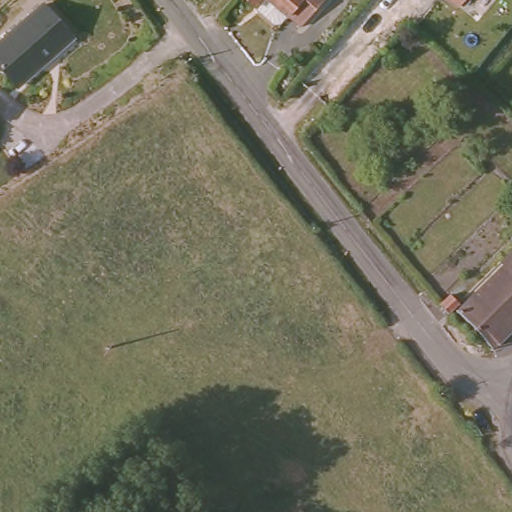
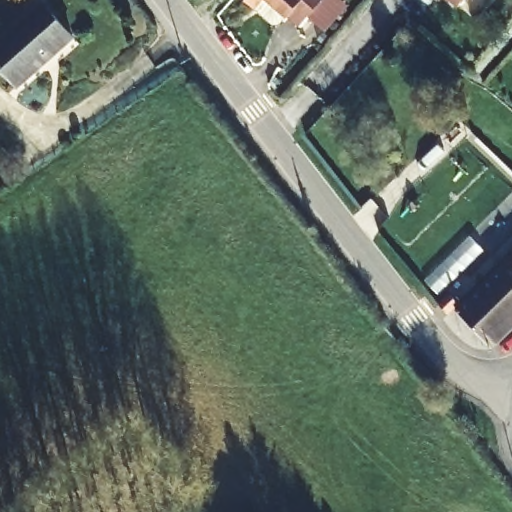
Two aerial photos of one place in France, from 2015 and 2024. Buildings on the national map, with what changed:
unchanged [(287,39),(240,0),(323,0),(324,0),(305,20),(287,39)]
unchanged [(453,0),(467,0),(461,7),(453,0)]
unchanged [(71,35),(13,85),(0,69),(0,42),(43,4),(71,35)]
unchanged [(493,351),(460,314),(512,267),(512,334),(493,351)]
unchanged [(440,304),(438,303),(452,291),(463,305),(451,316),(440,304)]

